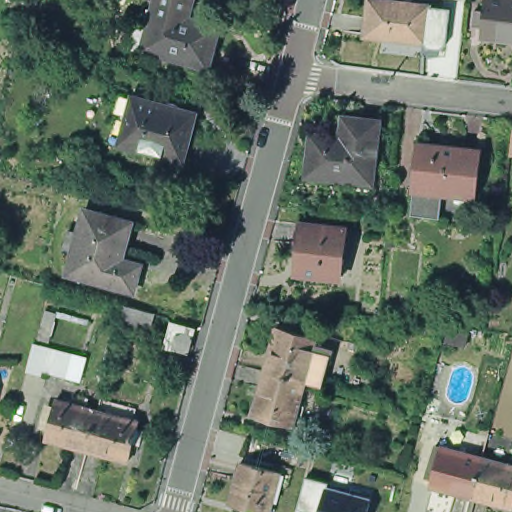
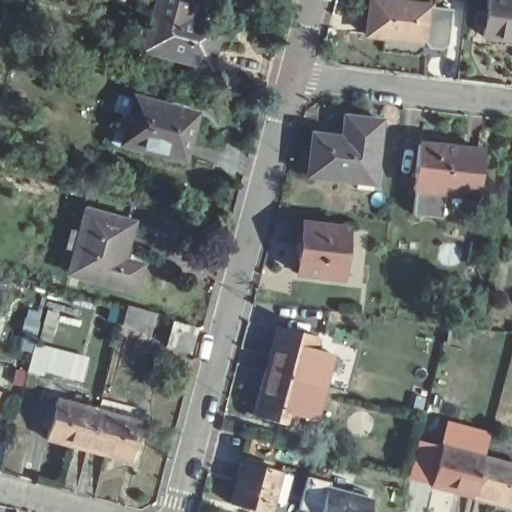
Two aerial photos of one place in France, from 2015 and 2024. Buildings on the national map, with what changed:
unchanged [(149,28),(154,10),(156,0),(192,0),(191,5),(186,19),(218,27),(208,67),(143,50),(149,28)]
unchanged [(376,0),(427,6),(422,42),(364,35),(368,0),(376,0)]
unchanged [(483,33),(474,32),(475,20),(484,21),(486,6),(497,7),(498,0),(512,0),(512,49),(481,45),(483,33)]
unchanged [(193,113),(181,159),(120,143),(128,114),(113,110),(116,94),(132,98),(133,96),(193,113)]
unchanged [(361,181),(319,176),(311,175),(313,159),(316,132),(336,134),(336,144),(344,145),(347,114),(384,118),(378,176),(377,183),(361,181)]
unchanged [(415,214),(418,188),(416,188),(421,144),(484,150),(479,195),(446,191),(443,217),(415,214)]
unchanged [(135,222),(125,259),(143,264),(136,290),(73,273),(78,251),(68,248),(73,232),(83,234),(88,210),(135,222)]
unchanged [(294,269),(298,238),(301,218),(307,218),(346,222),(351,223),(349,240),(344,239),(340,274),(294,269)]
unchanged [(136,329),(118,324),(123,304),(141,309),(136,329)]
unchanged [(169,321),(191,327),(186,351),(163,345),(169,321)]
unchanged [(253,414),(264,370),(276,327),(316,338),(315,341),(321,343),(319,351),(327,353),(326,360),(328,361),(321,386),(304,381),(292,424),(253,414)]
unchanged [(31,343),(47,347),(40,375),(23,371),(31,343)]
unchanged [(0,402),(0,398),(1,398),(0,402)]
unchanged [(53,419),(48,417),(51,405),(56,407),(58,400),(100,411),(90,449),(48,438),(53,419)]
unchanged [(139,429),(144,430),(141,442),(136,440),(131,460),(90,449),(100,411),(141,421),(139,429)]
unchanged [(436,469),(429,467),(433,457),(438,460),(441,450),(481,460),(470,500),(430,489),(436,469)]
unchanged [(249,507),(229,502),(241,460),(279,470),(269,512),(267,512),(261,510),(260,512),(248,512),(249,507)]
unchanged [(481,460),(512,469),(512,512),(470,500),(481,460)]
unchanged [(364,512),(318,512),(326,485),(369,495),(364,512)]

